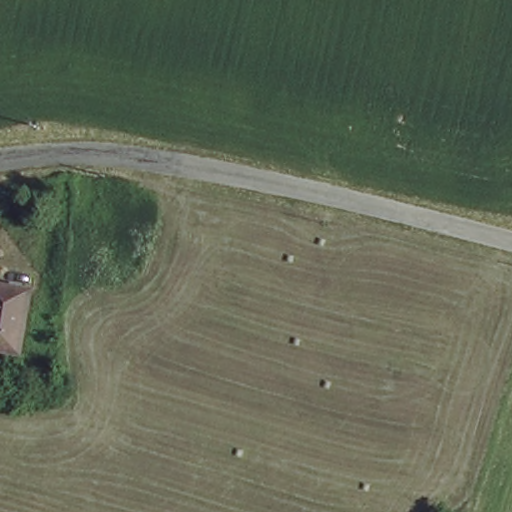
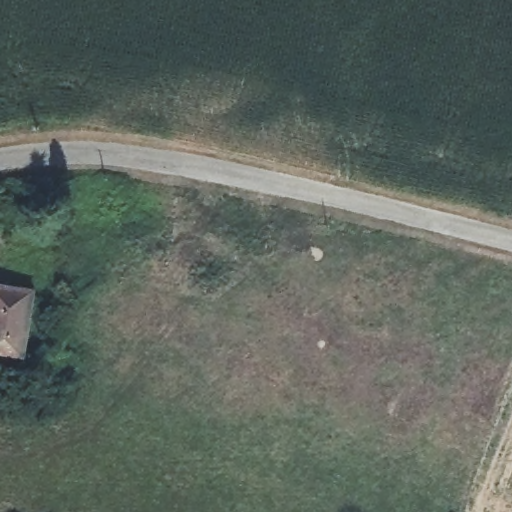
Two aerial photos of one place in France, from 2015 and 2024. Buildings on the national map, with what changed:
unchanged [(0,287),(28,291),(20,354),(0,349),(0,287)]

